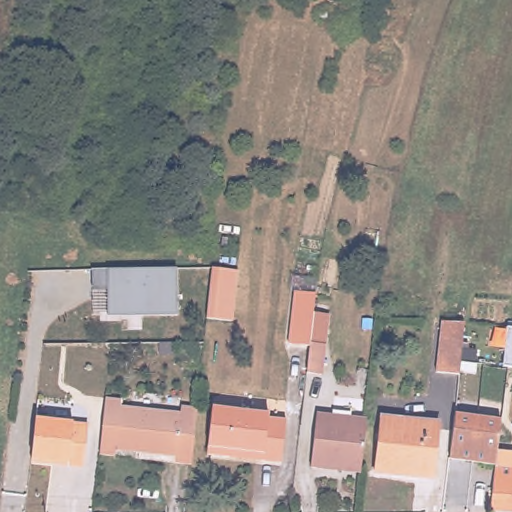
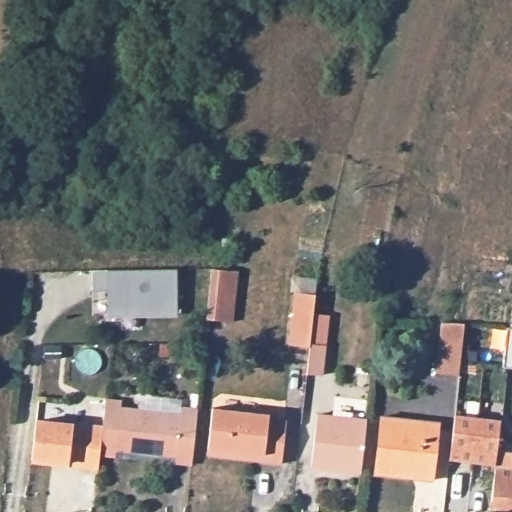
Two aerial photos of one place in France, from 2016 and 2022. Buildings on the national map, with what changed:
unchanged [(178,266),(178,314),(109,314),(109,291),(92,291),(92,269),(178,266)]
unchanged [(239,273),(234,324),(208,322),(212,272),(212,271),(239,273)]
unchanged [(289,343),(298,288),(316,292),(312,313),(308,345),(289,343)]
unchanged [(308,345),(312,313),(332,315),(322,378),(303,376),(308,345)]
unchanged [(442,318),(445,318),(463,321),(457,375),(435,371),(442,318)]
unchanged [(507,327),(512,328),(512,369),(502,368),(507,327)]
unchanged [(104,399),(123,401),(122,410),(185,416),(186,406),(200,407),(194,466),(180,465),(180,457),(117,452),(117,459),(98,457),(104,399)]
unchanged [(216,457),(222,406),(275,412),(275,417),(292,419),(288,464),(271,462),(271,456),(235,452),(235,458),(216,457)]
unchanged [(339,463),(312,460),(318,411),(366,417),(361,456),(360,466),(339,463)]
unchanged [(456,414),(500,422),(496,448),(493,466),(450,459),(456,414)]
unchanged [(41,417),(92,423),(89,464),(75,464),(75,458),(61,457),(60,463),(36,460),(41,417)]
unchanged [(387,419),(440,427),(431,481),(380,472),(387,419)]
unchanged [(493,466),(496,448),(512,450),(512,512),(505,512),(487,509),(493,466)]

